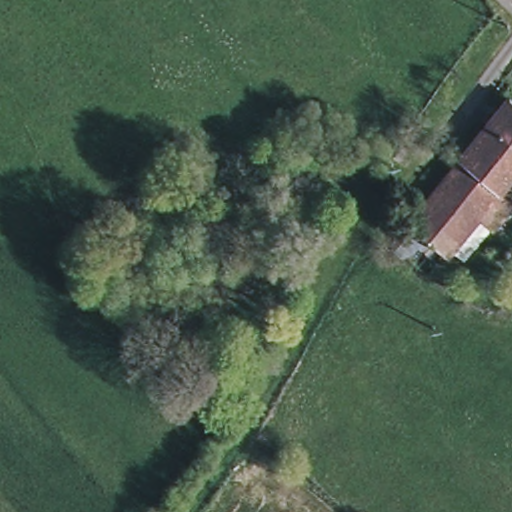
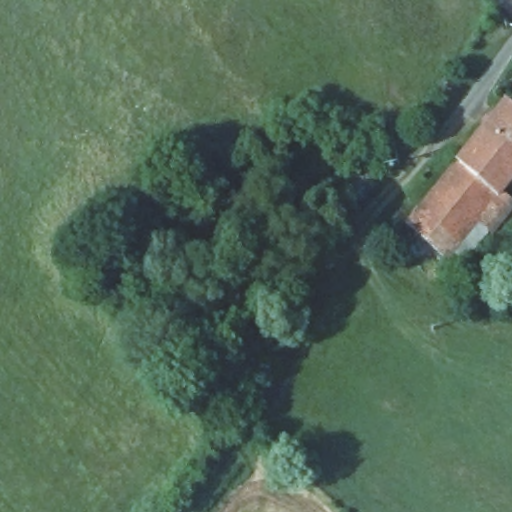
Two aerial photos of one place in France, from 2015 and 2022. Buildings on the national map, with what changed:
unchanged [(504,100),(512,106),(512,152),(482,126),(504,100)]
unchanged [(490,233),(475,220),(445,256),(402,223),(456,158),(482,126),(512,152),(512,176),(500,191),(512,201),(512,208),(490,233)]

